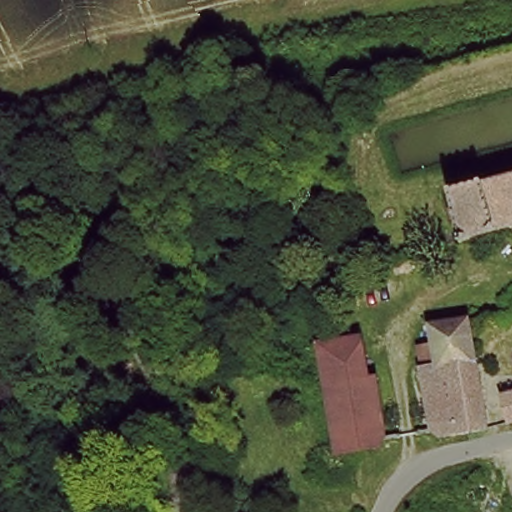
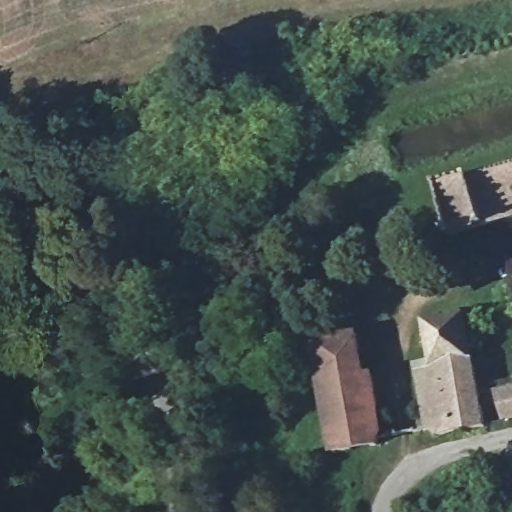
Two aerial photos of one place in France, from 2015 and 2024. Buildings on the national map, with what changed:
unchanged [(494,181),(512,176),(512,227),(457,242),(446,192),(494,181)]
unchanged [(237,269),(234,247),(247,245),(248,266),(237,269)]
unchanged [(427,370),(442,367),(435,326),(472,317),(492,428),(444,435),(435,428),(427,370)]
unchanged [(382,443),(338,450),(322,353),(320,339),(360,334),(367,376),(380,373),(387,432),(382,443)]
unchanged [(507,427),(497,392),(512,387),(512,425),(507,427)]

